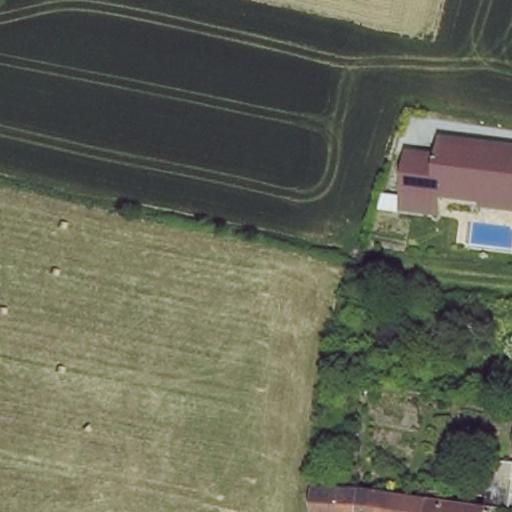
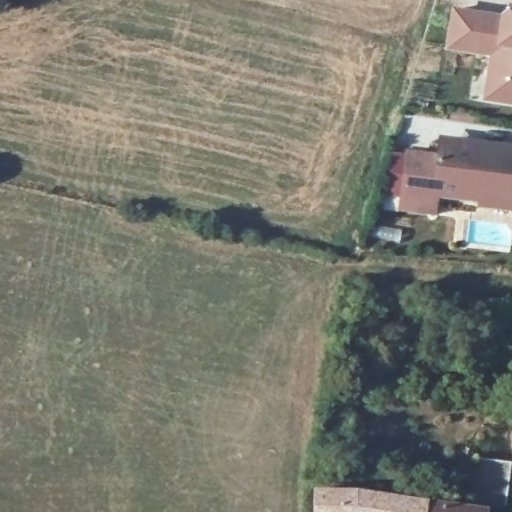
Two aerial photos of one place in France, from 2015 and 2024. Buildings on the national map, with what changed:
new [(489,55),(445,48),(452,7),(498,13),(512,3),(512,105),(482,101),(489,55)]
unchanged [(402,191),(407,152),(439,154),(441,140),(512,147),(512,200),(482,198),(483,192),(435,188),(435,195),(434,210),(400,207),(402,191)]
unchanged [(441,316),(419,315),(420,293),(441,295),(441,316)]
unchanged [(512,438),(512,451),(511,451),(512,438)]
unchanged [(316,512),(316,496),(364,495),(424,504),(423,512),(316,512)]
unchanged [(473,512),(423,512),(424,504),(473,512)]

